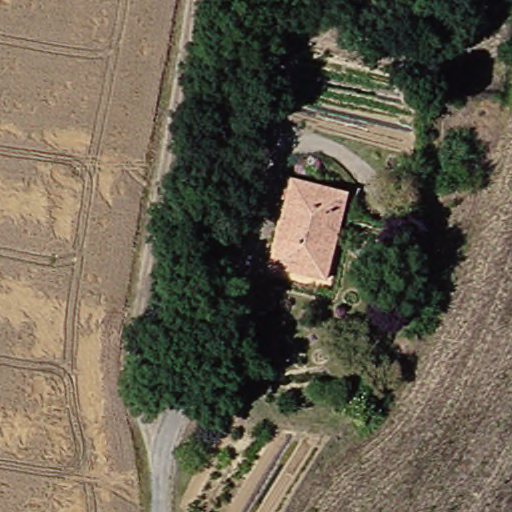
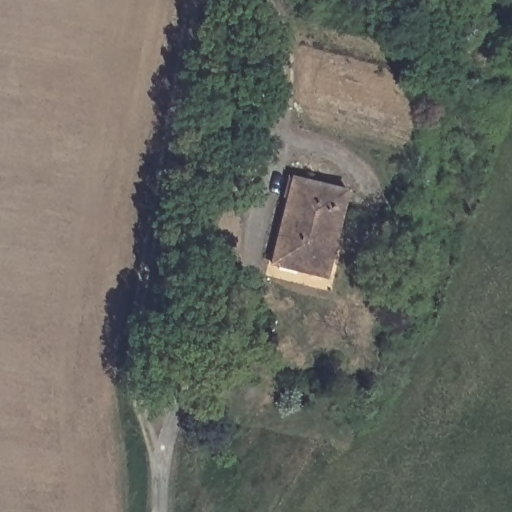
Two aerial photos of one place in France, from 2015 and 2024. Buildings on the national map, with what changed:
unchanged [(300,174),(354,192),(328,277),(274,259),(300,174)]

